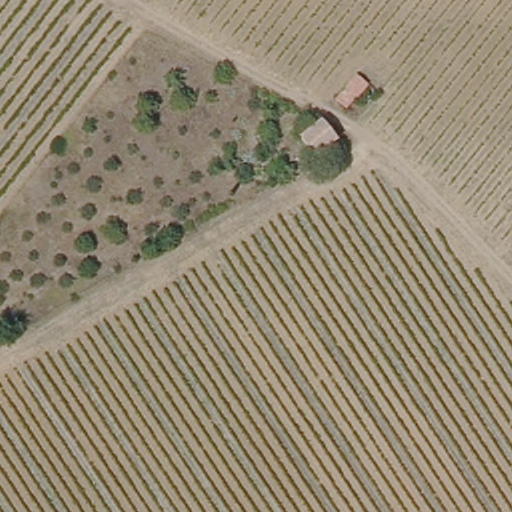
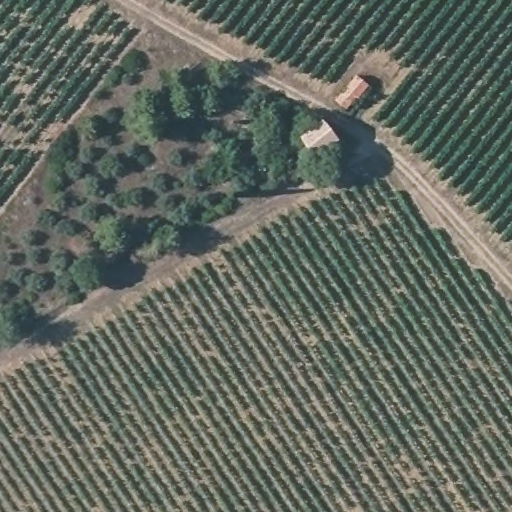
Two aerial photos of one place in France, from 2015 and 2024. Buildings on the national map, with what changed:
unchanged [(376,80),(357,111),(323,90),(354,60),(376,80)]
unchanged [(315,119),(334,138),(314,157),(296,135),(315,119)]

